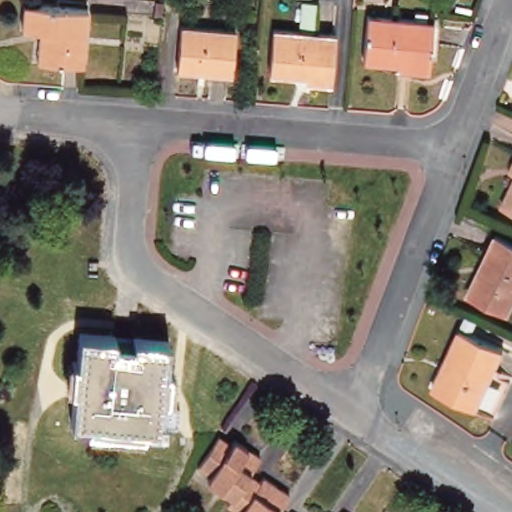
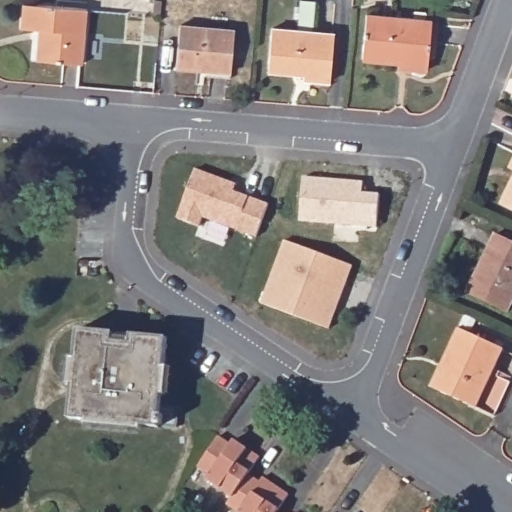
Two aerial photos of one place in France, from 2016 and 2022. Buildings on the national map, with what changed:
unchanged [(83,65),(38,62),(40,31),(22,30),(24,5),(87,10),(83,65)]
unchanged [(426,71),(404,68),(405,63),(361,58),(365,15),(431,22),(426,71)]
unchanged [(231,80),(200,77),(201,70),(177,68),(181,26),(235,30),(231,80)]
unchanged [(332,87),(310,85),(311,76),(270,72),(274,29),(336,34),(332,87)]
new [(256,238),(202,218),(199,227),(177,219),(195,170),(228,182),(225,189),(268,205),(256,238)]
unchanged [(512,171),(512,175),(510,174),(512,171)]
new [(364,183),(363,195),(379,196),(377,225),(303,220),(306,179),(364,183)]
new [(233,192),(225,189),(228,182),(236,185),(233,192)]
unchanged [(512,193),(512,213),(504,209),(512,193)]
unchanged [(464,294),(491,234),(512,242),(512,297),(505,311),(464,294)]
new [(354,265),(330,328),(260,303),(285,239),(354,265)]
unchanged [(160,424),(72,415),(81,328),(115,332),(114,341),(133,343),(134,333),(169,337),(160,424)]
unchanged [(478,409),(435,392),(460,333),(503,350),(478,409)]
unchanged [(258,460),(245,479),(232,498),(209,482),(212,478),(197,468),(204,459),(218,438),(231,447),(234,443),(258,460)]
unchanged [(258,487),(261,482),(287,499),(278,512),(236,512),(227,506),(232,498),(245,479),(258,487)]

